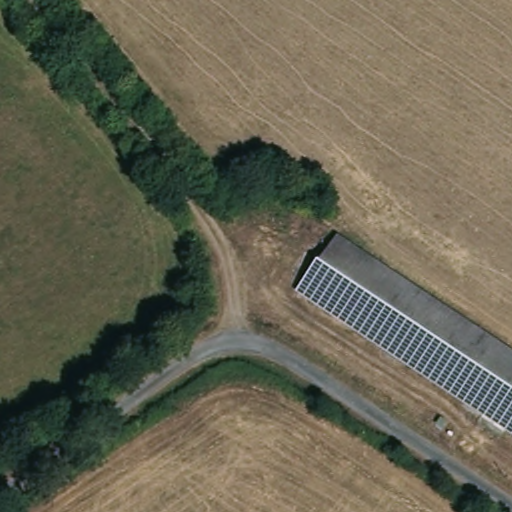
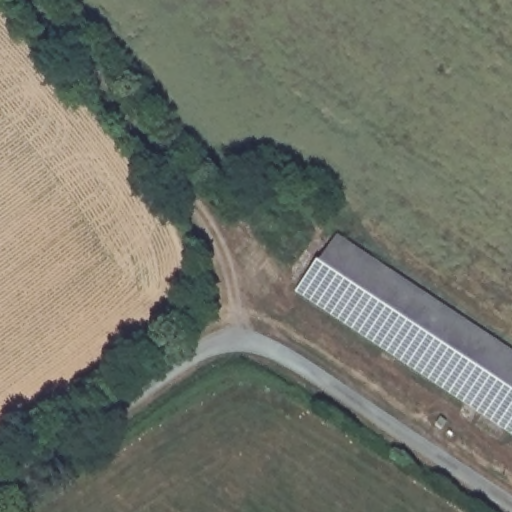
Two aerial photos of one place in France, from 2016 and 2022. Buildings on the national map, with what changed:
unchanged [(512,360),(512,440),(297,291),(334,236),(512,360)]

